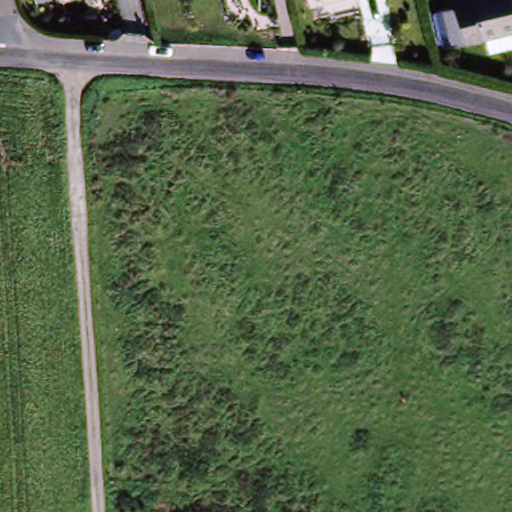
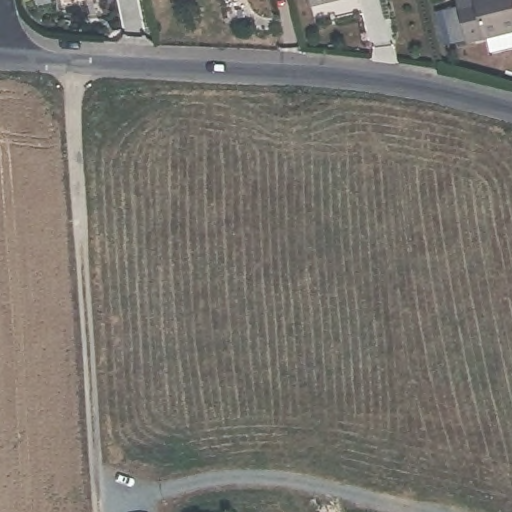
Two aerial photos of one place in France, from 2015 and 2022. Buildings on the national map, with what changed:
unchanged [(312,0),(347,0),(335,2),(314,7),(312,0)]
unchanged [(462,7),(460,2),(459,0),(512,0),(512,48),(493,52),(489,37),(470,42),(469,39),(448,44),(441,12),(462,7)]

